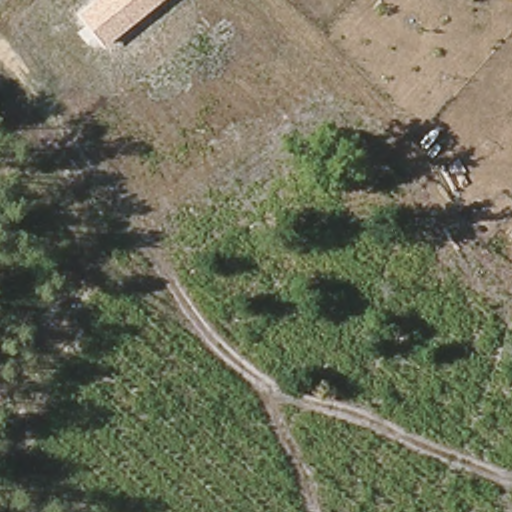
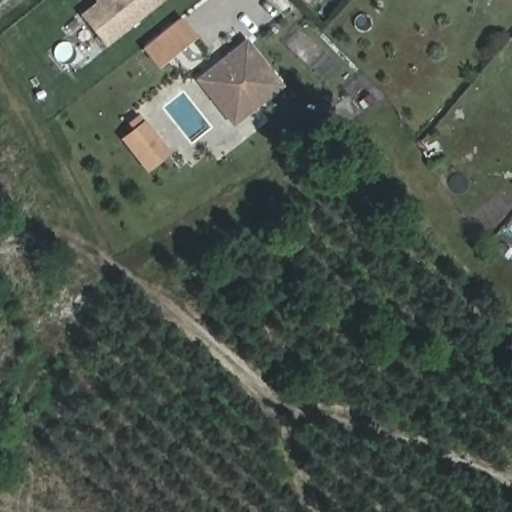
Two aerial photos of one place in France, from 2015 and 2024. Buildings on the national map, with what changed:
unchanged [(105,46),(79,13),(94,0),(163,0),(105,46)]
new [(159,65),(145,47),(181,19),(194,37),(159,65)]
new [(232,127),(196,79),(247,38),(285,86),(232,127)]
new [(148,167),(126,138),(145,123),(167,152),(148,167)]

